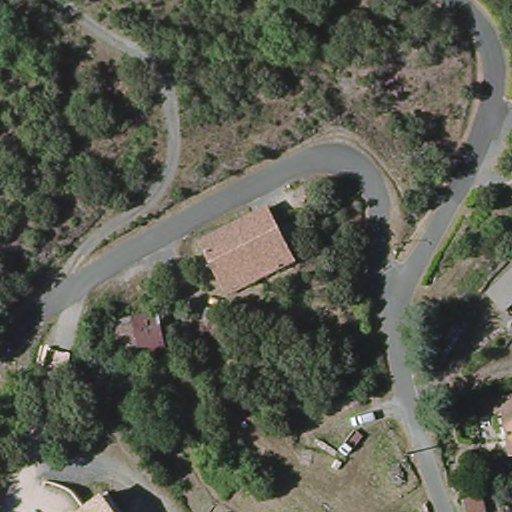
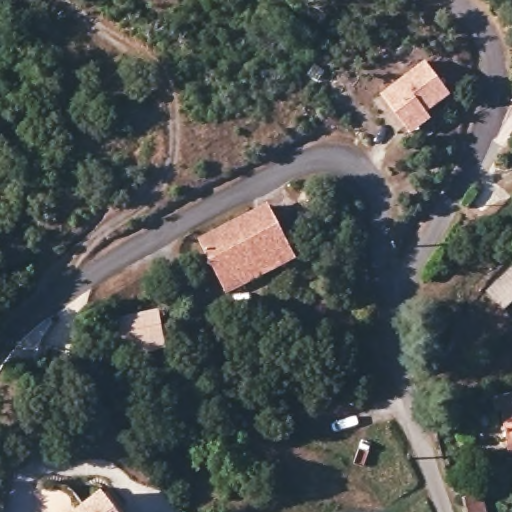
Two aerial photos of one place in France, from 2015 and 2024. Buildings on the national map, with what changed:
new [(450,96),(426,114),(431,120),(411,137),(380,96),(425,64),(450,96)]
unchanged [(203,237),(272,204),(297,259),(279,267),(228,291),(222,277),(203,237)]
unchanged [(489,295),(512,278),(512,305),(502,312),(489,295)]
unchanged [(144,352),(142,348),(122,350),(121,345),(115,320),(157,315),(159,314),(166,349),(144,352)]
unchanged [(503,417),(496,420),(491,402),(512,396),(512,453),(503,417)]
unchanged [(117,512),(76,512),(102,493),(117,512)]
unchanged [(485,495),(491,512),(471,512),(467,500),(485,495)]
unchanged [(76,512),(68,512),(73,509),(76,512)]

